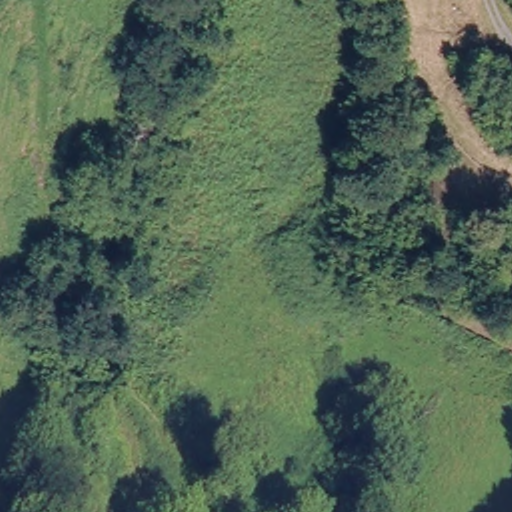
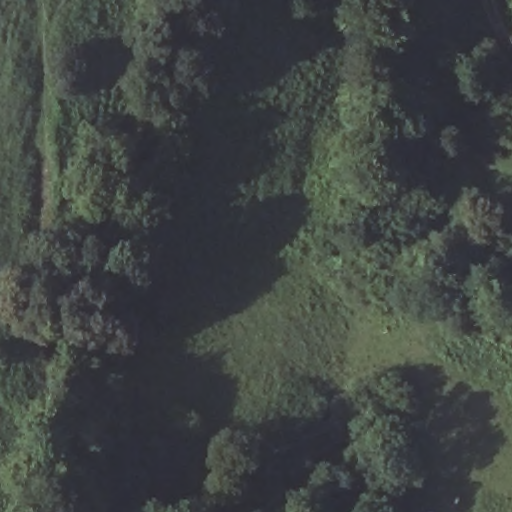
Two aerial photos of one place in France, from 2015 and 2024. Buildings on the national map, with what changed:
unchanged [(212,470),(240,496),(227,512),(178,512),(182,508),(212,470)]

